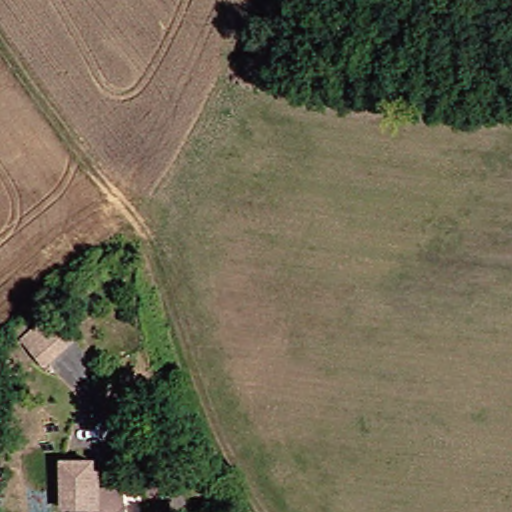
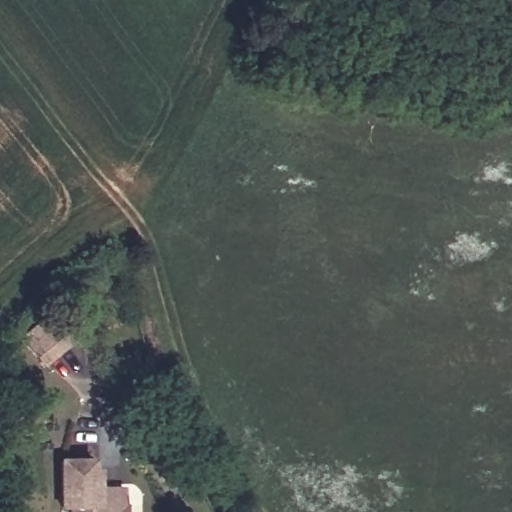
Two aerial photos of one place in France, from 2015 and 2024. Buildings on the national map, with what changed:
unchanged [(23,340),(29,335),(51,313),(76,339),(53,361),(47,367),(23,340)]
unchanged [(83,510),(66,510),(65,463),(78,462),(97,462),(97,491),(127,491),(127,507),(130,507),(130,512),(83,512),(83,510)]

